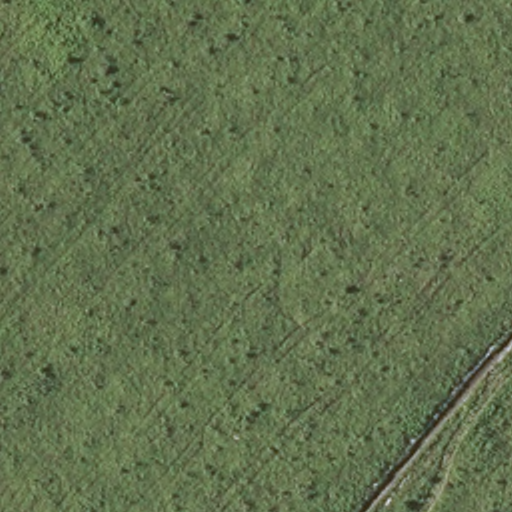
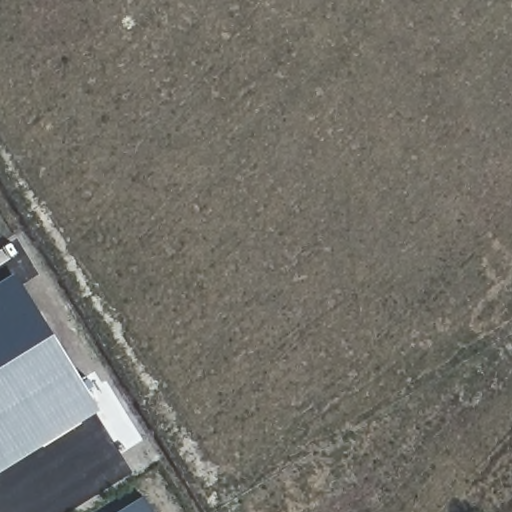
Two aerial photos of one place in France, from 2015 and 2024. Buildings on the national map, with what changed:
new [(15,275),(101,412),(0,473),(0,284),(15,275)]
new [(146,500),(154,512),(127,512),(146,500)]

